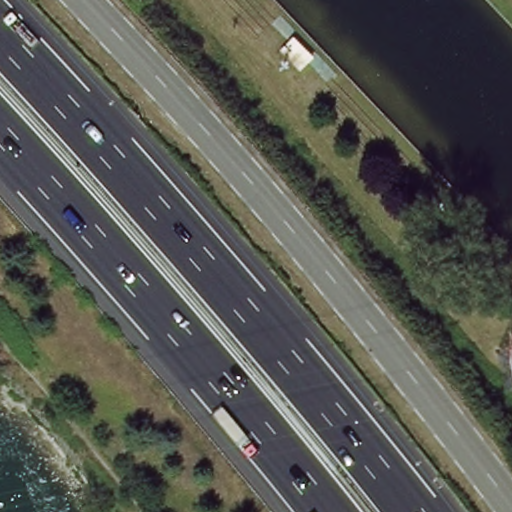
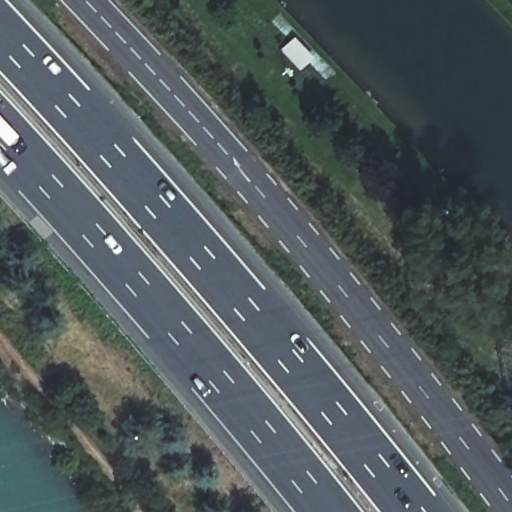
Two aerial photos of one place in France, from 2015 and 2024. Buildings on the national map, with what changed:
unchanged [(295,48),(310,65),(300,74),(285,57),(295,48)]

